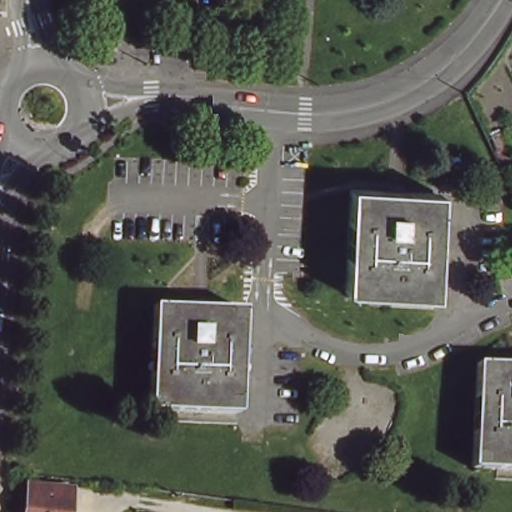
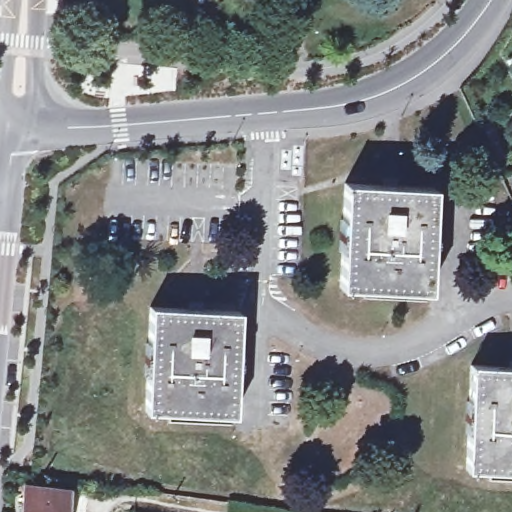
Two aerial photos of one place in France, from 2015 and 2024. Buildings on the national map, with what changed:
unchanged [(498,140),(505,155),(498,158),(492,143),(498,140)]
unchanged [(512,175),(512,186),(508,177),(512,175)]
unchanged [(426,187),(421,293),(337,289),(343,184),(426,187)]
unchanged [(232,315),(227,420),(144,415),(150,310),(232,315)]
unchanged [(512,364),(512,469),(467,468),(473,362),(512,364)]
unchanged [(70,491),(67,512),(22,512),(26,485),(70,491)]

